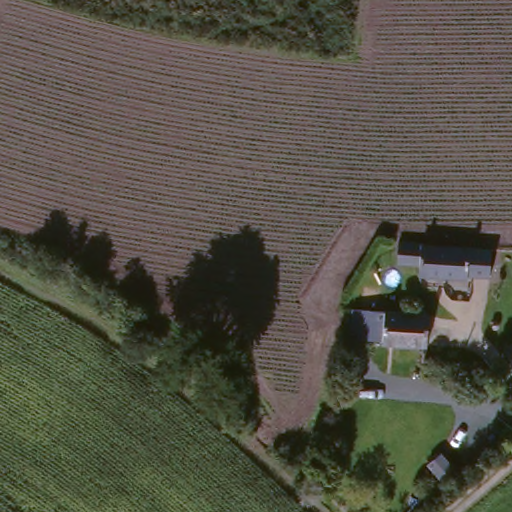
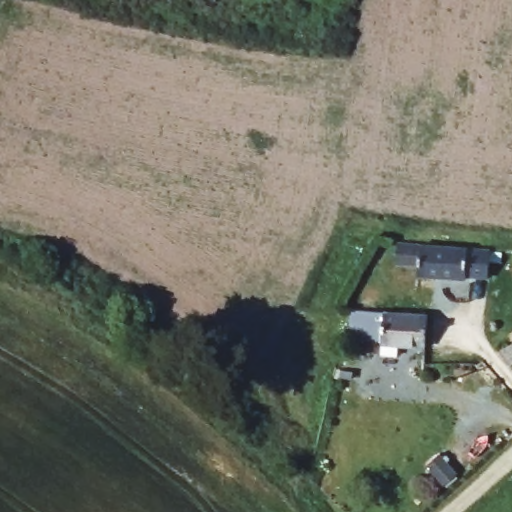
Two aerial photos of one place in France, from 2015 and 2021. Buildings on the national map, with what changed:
unchanged [(473,244),(471,273),(423,270),(423,260),(400,258),(401,238),(473,243),(473,244)]
unchanged [(408,308),(431,309),(429,341),(386,339),(386,335),(353,333),(356,305),(408,308)]

